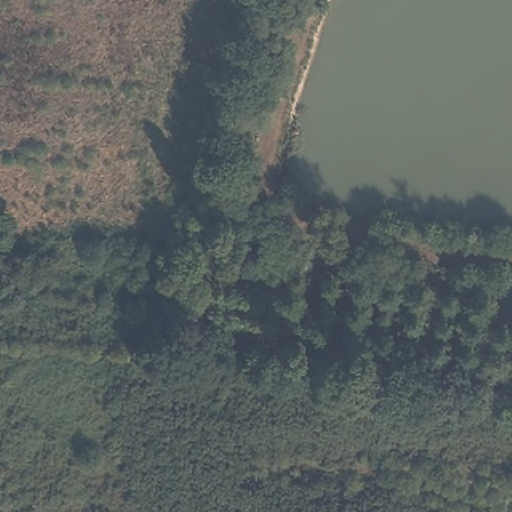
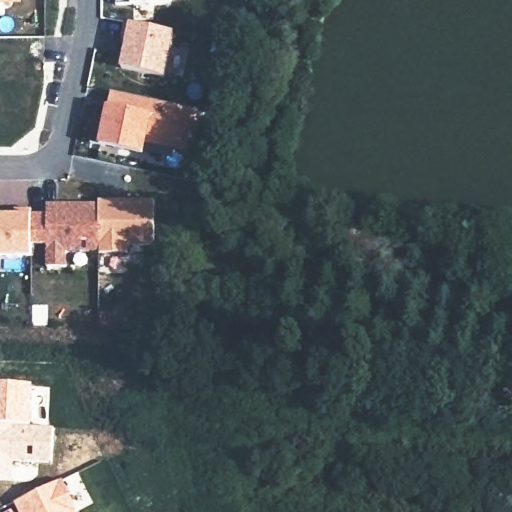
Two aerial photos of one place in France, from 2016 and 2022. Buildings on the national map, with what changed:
new [(119,8),(119,0),(174,0),(174,8),(119,8)]
new [(126,40),(121,39),(124,24),(172,34),(163,78),(119,69),(126,40)]
new [(100,119),(109,120),(115,95),(202,114),(193,155),(149,146),(146,158),(94,148),(98,129),(100,119)]
new [(100,201),(108,201),(156,202),(155,246),(130,246),(129,254),(100,254),(100,252),(67,252),(68,267),(49,267),(49,245),(33,245),(33,257),(0,257),(0,215),(5,215),(5,212),(16,213),(17,209),(33,210),(33,215),(49,215),(48,207),(56,207),(56,205),(100,205),(100,201)]

